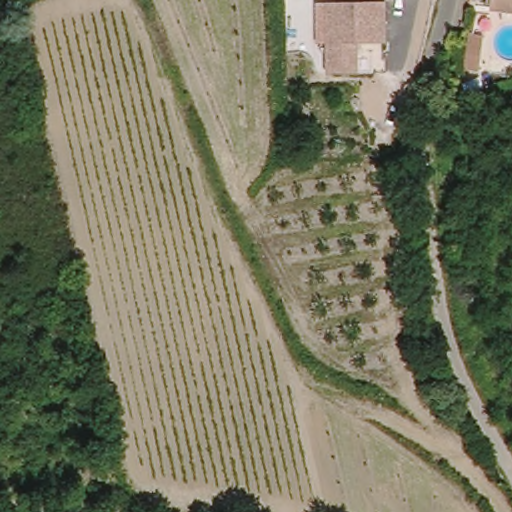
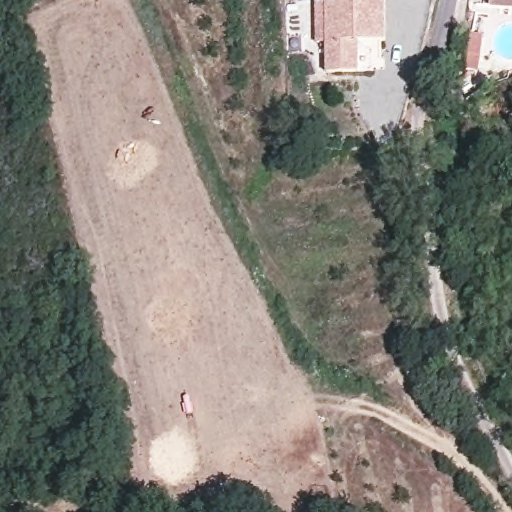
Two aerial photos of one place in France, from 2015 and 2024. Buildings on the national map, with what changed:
unchanged [(360,69),(328,70),(327,0),(388,0),(389,39),(377,39),(377,69),(360,69)]
unchanged [(488,0),(512,0),(512,9),(487,6),(488,0)]
unchanged [(482,47),(466,45),(469,23),(485,24),(482,47)]
unchanged [(126,488),(131,512),(115,512),(111,491),(126,488)]

